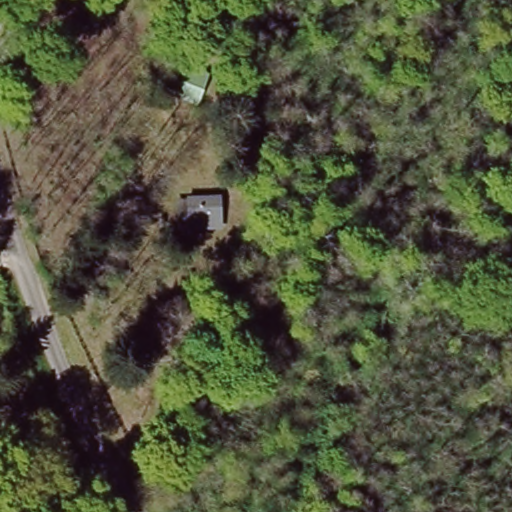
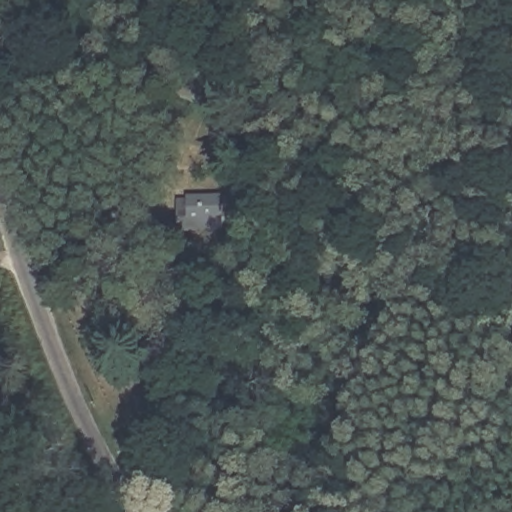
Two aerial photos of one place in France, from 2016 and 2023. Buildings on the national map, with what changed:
unchanged [(201,220),(179,220),(179,189),(217,188),(218,211),(218,220),(201,220)]

